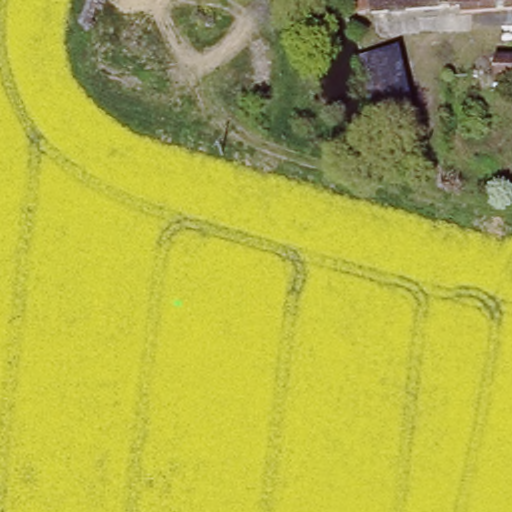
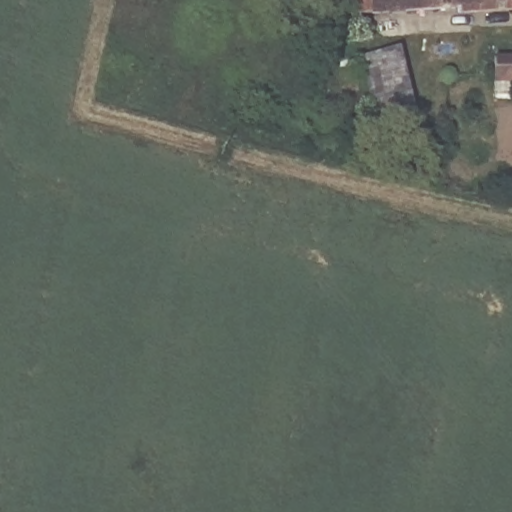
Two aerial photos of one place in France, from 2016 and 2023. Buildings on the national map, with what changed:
unchanged [(359,0),(512,0),(512,5),(360,15),(359,0)]
unchanged [(406,53),(417,125),(387,130),(378,132),(367,59),(406,53)]
unchanged [(512,84),(493,83),(492,56),(512,56),(512,84)]

